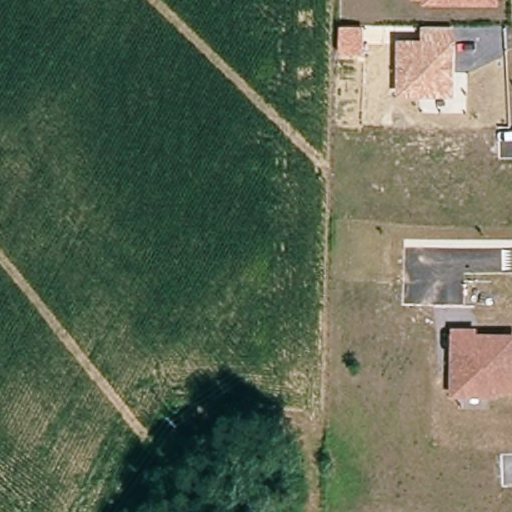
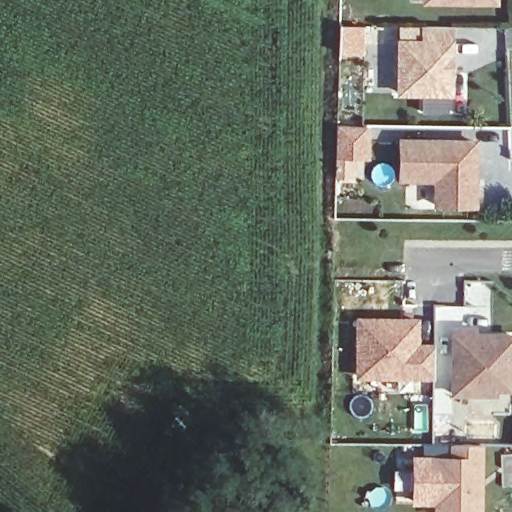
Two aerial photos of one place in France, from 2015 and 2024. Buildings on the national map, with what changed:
unchanged [(499,0),(499,5),(422,5),(422,0),(499,0)]
unchanged [(396,41),(420,40),(420,26),(451,26),(452,41),(452,96),(396,96),(396,41)]
new [(338,41),(358,41),(357,69),(337,68),(338,41)]
new [(354,179),(341,179),(341,159),(337,159),(337,126),(371,126),(370,159),(355,159),(354,179)]
new [(477,209),(432,210),(432,182),(398,182),(397,138),(478,138),(477,209)]
new [(420,316),(420,342),(434,342),(433,378),(356,378),(356,316),(420,316)]
unchanged [(476,326),(476,333),(512,333),(512,392),(500,393),(499,399),(448,397),(450,327),(476,326)]
new [(448,455),(449,443),(483,444),(482,512),(434,512),(434,455),(448,455)]

